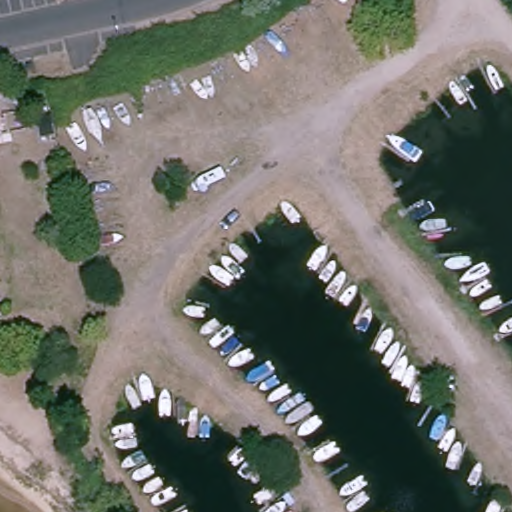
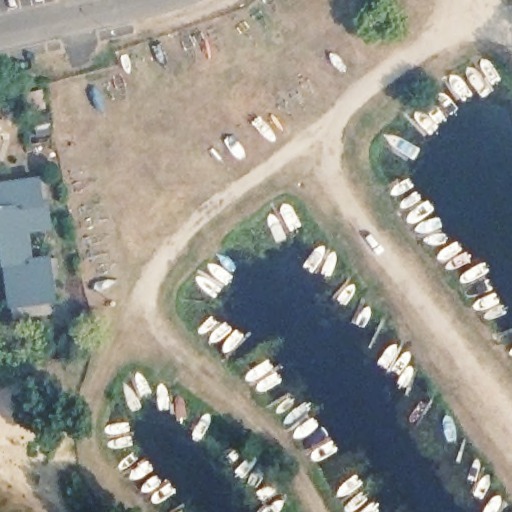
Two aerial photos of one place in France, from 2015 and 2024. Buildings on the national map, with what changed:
unchanged [(1,131),(0,132),(0,126),(1,131)]
unchanged [(1,131),(3,138),(0,138),(0,132),(1,131)]
new [(46,175),(54,229),(31,233),(34,259),(53,255),(60,301),(9,309),(0,240),(0,181),(46,175)]
demolished [(30,184),(39,274),(52,274),(54,307),(17,311),(8,185),(30,184)]

